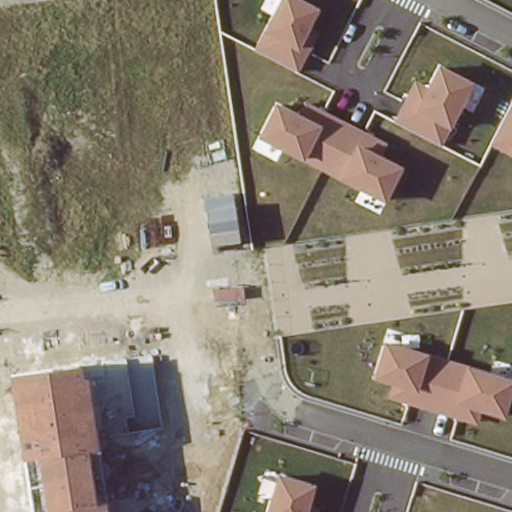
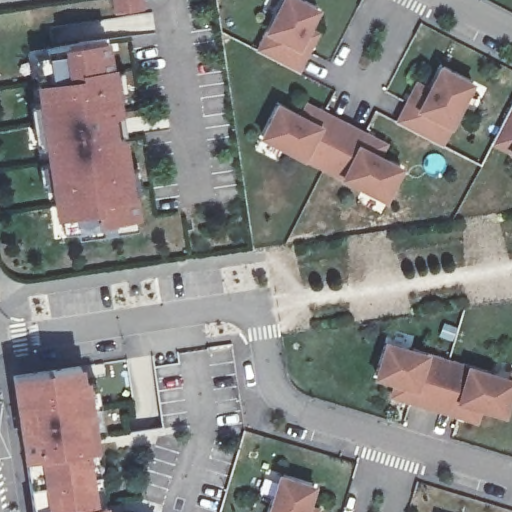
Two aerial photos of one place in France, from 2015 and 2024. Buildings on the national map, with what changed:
unchanged [(282,0),(302,0),(320,9),(305,42),(313,46),(300,74),(256,52),(282,0)]
new [(50,80),(45,47),(104,39),(108,65),(110,64),(117,110),(108,111),(110,121),(118,120),(130,192),(131,192),(135,214),(133,215),(135,227),(76,236),(71,202),(54,205),(36,82),(50,80)]
unchanged [(413,81),(428,87),(439,63),(475,81),(445,147),(395,122),(413,81)]
unchanged [(512,96),(512,156),(491,145),(512,96)]
unchanged [(277,102),(298,112),(303,102),(390,144),(384,156),(404,165),(388,202),(260,138),(277,102)]
unchanged [(385,341),(512,377),(512,393),(506,417),(483,411),(480,423),(390,401),(394,387),(374,381),(385,341)]
unchanged [(97,448),(90,449),(98,497),(106,497),(111,512),(29,512),(10,375),(80,365),(97,448)]
unchanged [(316,483),(309,512),(266,512),(279,472),(316,483)]

